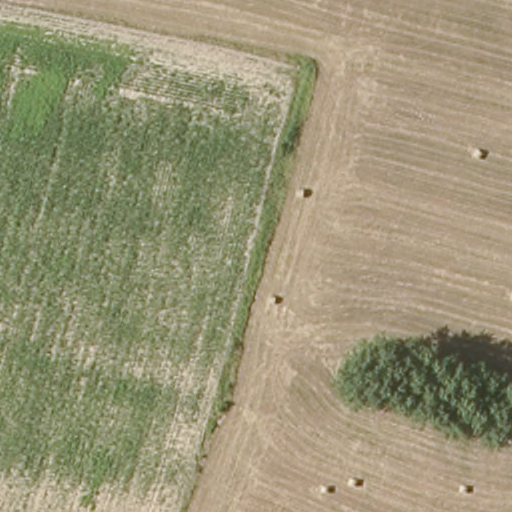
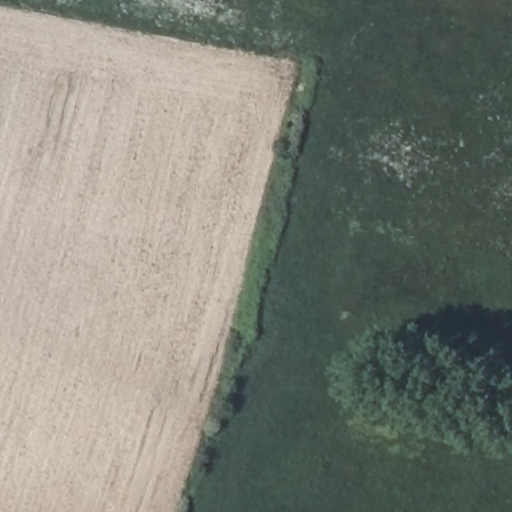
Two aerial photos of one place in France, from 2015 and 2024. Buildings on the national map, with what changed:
[]

